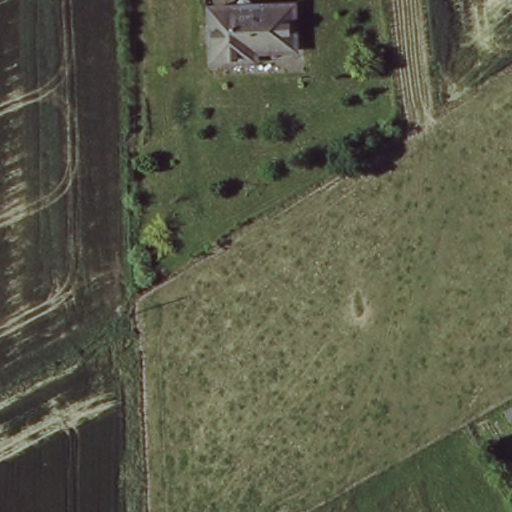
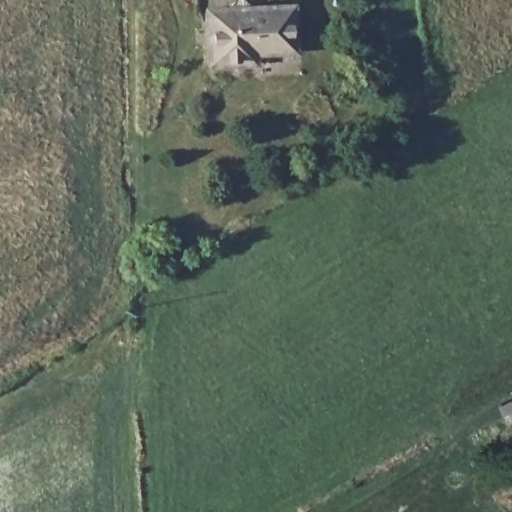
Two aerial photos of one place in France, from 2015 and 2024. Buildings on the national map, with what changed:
unchanged [(207,6),(281,0),(298,0),(302,49),(266,51),(266,63),(212,67),(207,6)]

